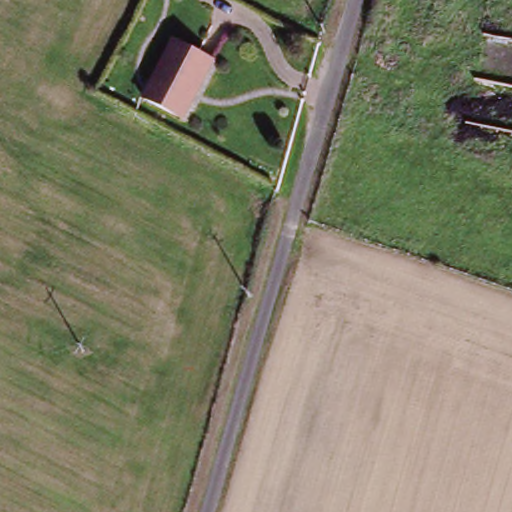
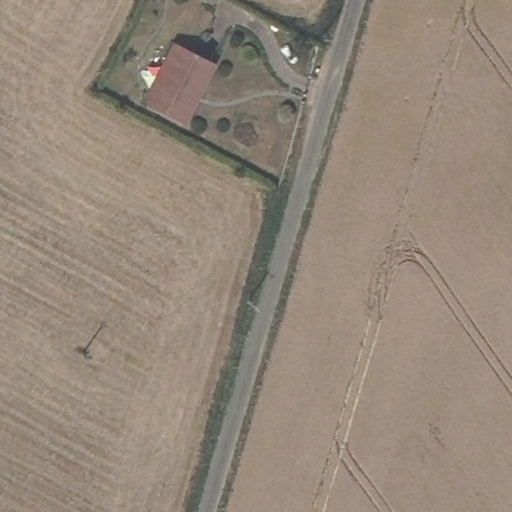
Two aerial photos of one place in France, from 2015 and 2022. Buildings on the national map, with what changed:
unchanged [(214,61),(182,119),(144,99),(175,40),(214,61)]

